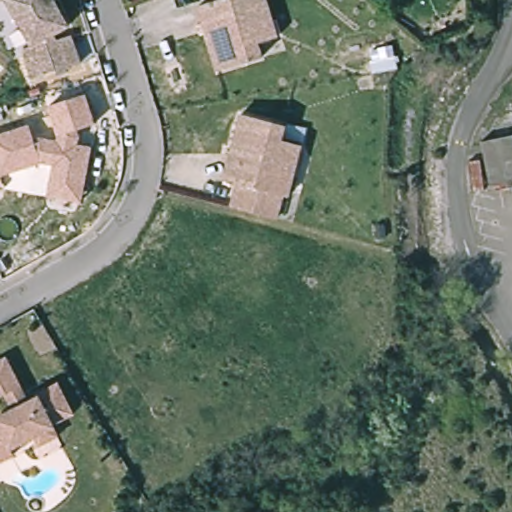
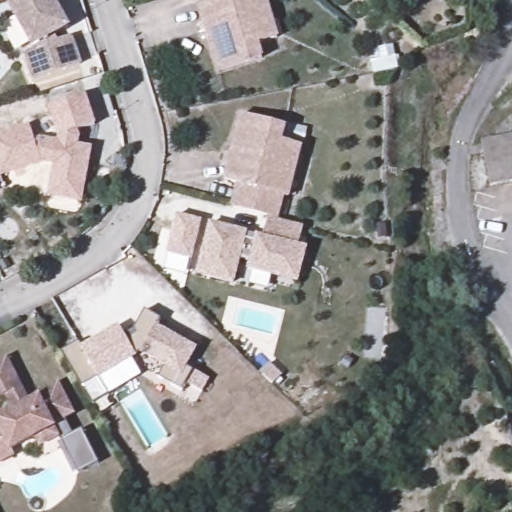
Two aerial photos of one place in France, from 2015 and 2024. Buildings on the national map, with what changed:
unchanged [(0,2),(0,0),(3,0),(0,2)]
unchanged [(70,25),(55,34),(58,39),(72,35),(82,62),(35,78),(25,50),(33,45),(8,0),(56,0),(70,25)]
unchanged [(275,38),(255,42),(260,56),(215,70),(196,4),(210,1),(210,0),(264,0),(275,38)]
unchanged [(51,181),(53,164),(38,163),(0,177),(0,135),(27,125),(32,140),(40,138),(55,140),(56,132),(46,105),(82,92),(93,124),(77,127),(77,144),(90,145),(85,185),(51,181)]
unchanged [(230,205),(236,182),(222,179),(240,112),(284,125),(280,139),(300,145),(286,195),(282,194),(276,217),(230,205)]
unchanged [(512,140),(512,179),(492,186),(477,145),(510,135),(512,140)]
new [(276,217),(302,225),(297,245),(306,247),(297,281),(247,270),(248,261),(238,259),(232,283),(195,275),(207,223),(246,231),(256,234),(262,235),(267,215),(276,217)]
new [(191,260),(163,255),(170,222),(198,228),(191,260)]
new [(180,390),(156,376),(162,366),(140,351),(133,355),(98,376),(79,388),(58,352),(78,340),(82,345),(117,325),(126,340),(133,334),(131,330),(144,310),(160,320),(155,325),(196,348),(185,367),(192,370),(180,390)]
unchanged [(0,458),(0,441),(0,417),(14,410),(7,394),(0,397),(0,361),(7,358),(30,402),(38,398),(37,395),(58,384),(72,411),(51,421),(57,433),(38,442),(34,433),(10,445),(13,452),(0,458)]

